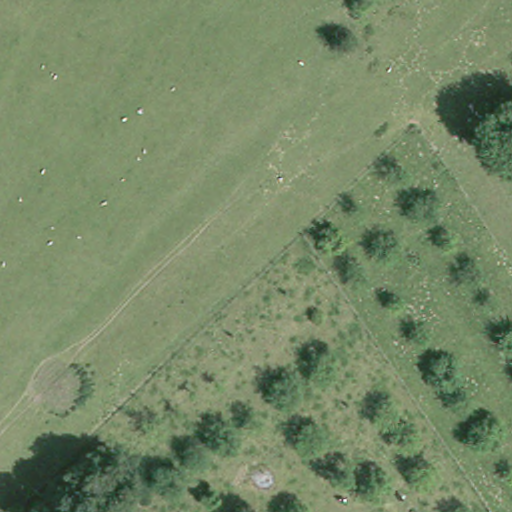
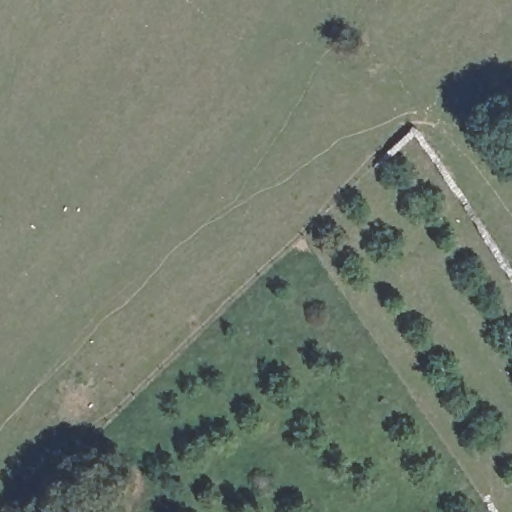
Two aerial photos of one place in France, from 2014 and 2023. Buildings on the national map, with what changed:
[]

